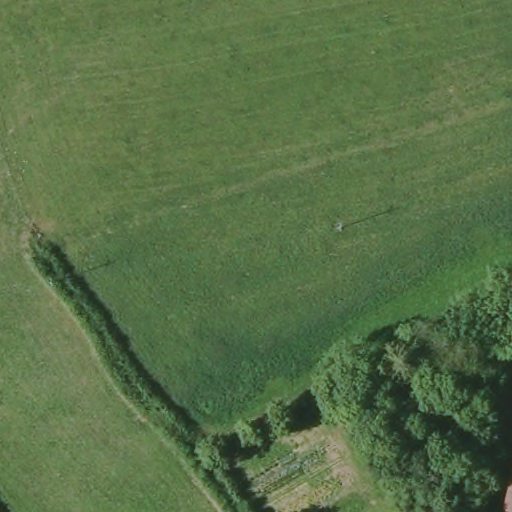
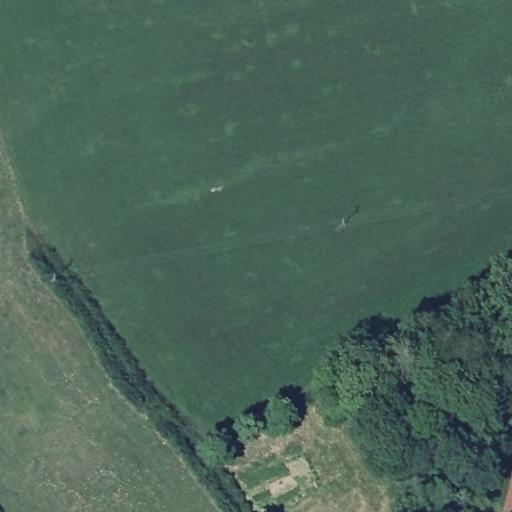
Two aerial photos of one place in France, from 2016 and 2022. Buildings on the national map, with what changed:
unchanged [(504,512),(512,480),(512,512),(504,512)]

